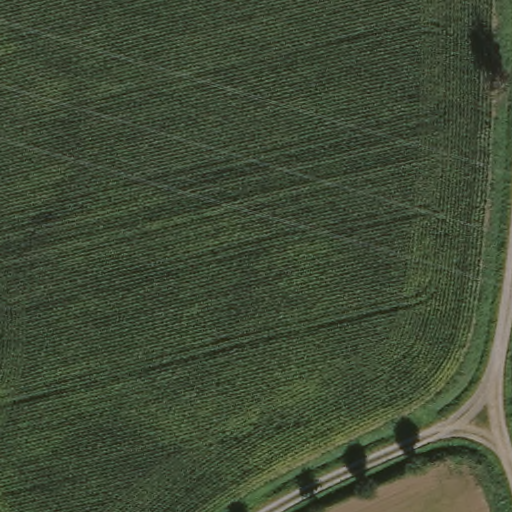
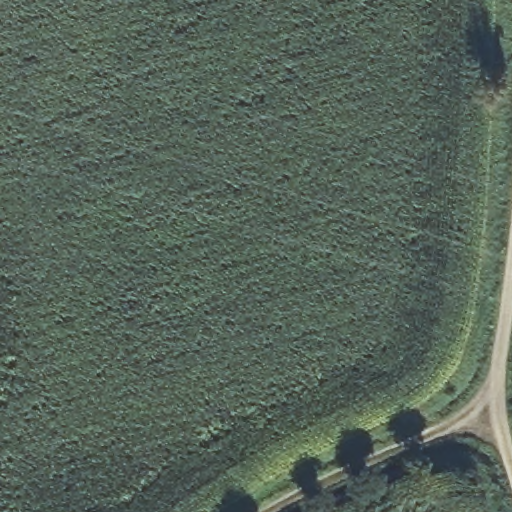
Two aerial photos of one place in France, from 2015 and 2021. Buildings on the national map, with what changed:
[]

